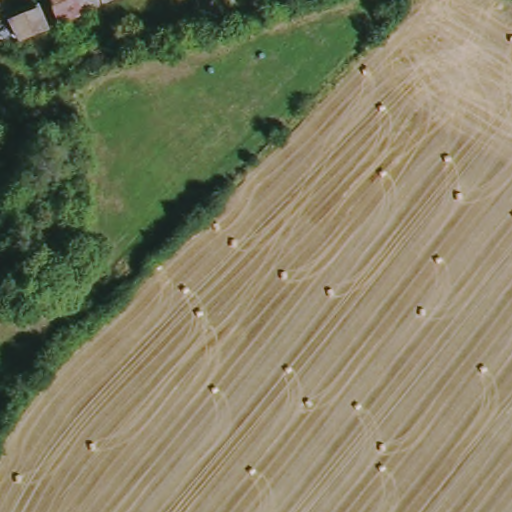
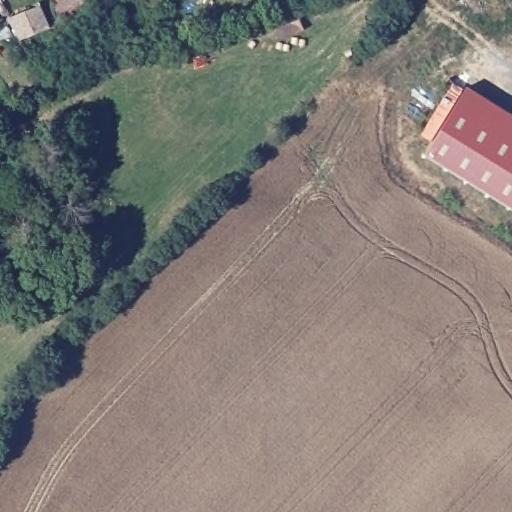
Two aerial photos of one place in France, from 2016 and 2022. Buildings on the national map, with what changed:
unchanged [(87,13),(65,25),(59,0),(111,0),(112,1),(87,13)]
unchanged [(111,0),(114,0),(112,1),(111,0)]
unchanged [(17,59),(6,37),(47,18),(54,40),(17,59)]
new [(433,142),(421,135),(452,83),(464,91),(466,88),(512,117),(512,211),(425,157),(433,142)]

